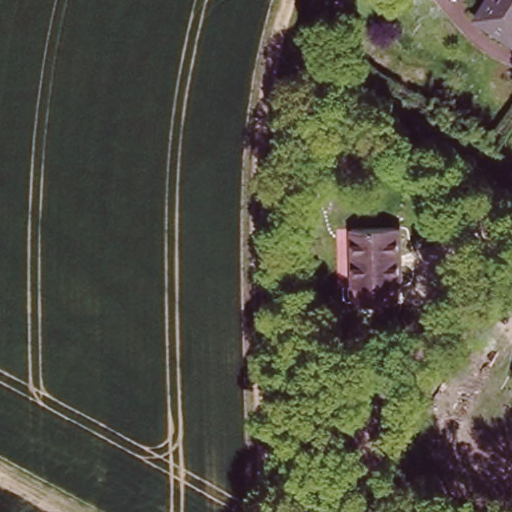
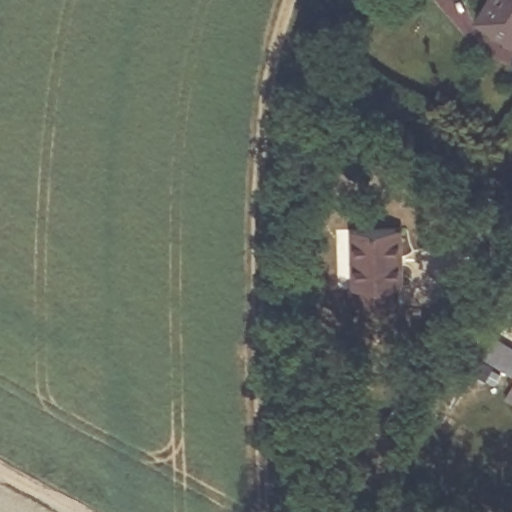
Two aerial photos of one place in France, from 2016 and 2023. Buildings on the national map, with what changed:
unchanged [(485,16),(493,0),(512,0),(512,35),(485,16)]
unchanged [(357,230),(396,227),(404,226),(407,261),(409,284),(403,285),(405,305),(362,307),(362,290),(360,263),(357,230)]
unchanged [(402,430),(391,450),(374,439),(387,419),(402,430)]

